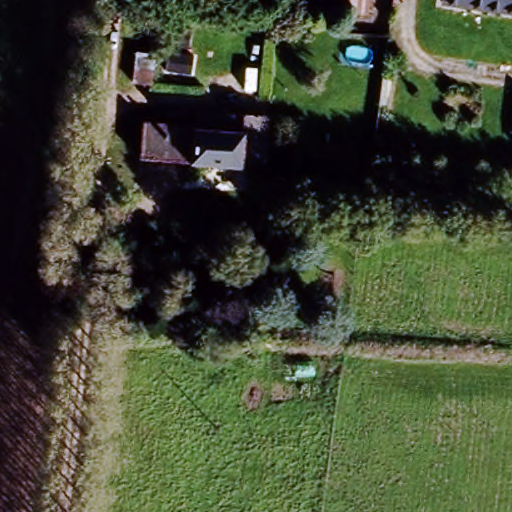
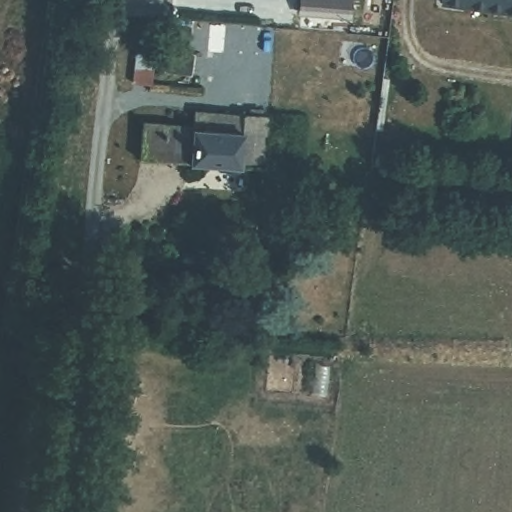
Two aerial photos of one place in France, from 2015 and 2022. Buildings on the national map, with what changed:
unchanged [(370,13),(277,1),(277,0),(372,0),(370,13)]
unchanged [(512,13),(438,1),(438,0),(512,0),(512,13)]
unchanged [(263,158),(262,166),(246,164),(150,152),(154,121),(204,126),(207,108),(251,113),(268,114),(263,158)]

